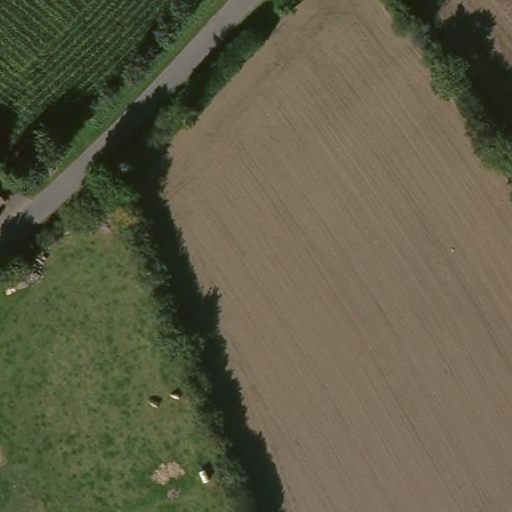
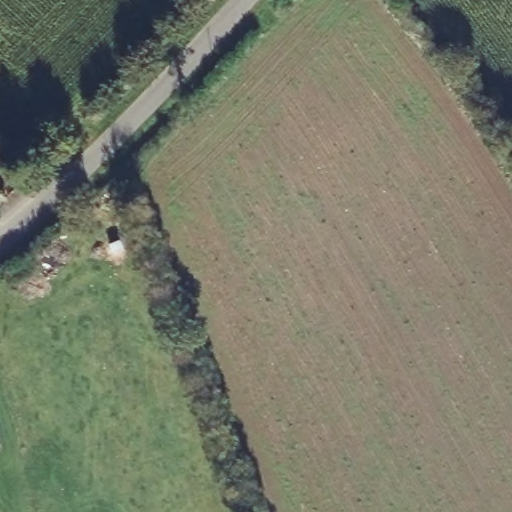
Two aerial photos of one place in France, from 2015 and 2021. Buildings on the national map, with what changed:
unchanged [(1,230),(0,229),(0,206),(13,217),(1,230)]

